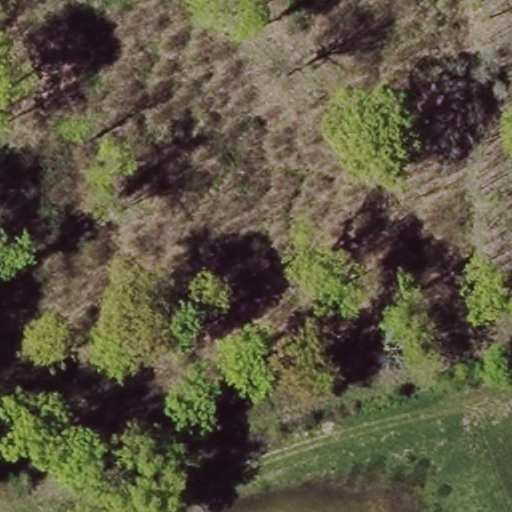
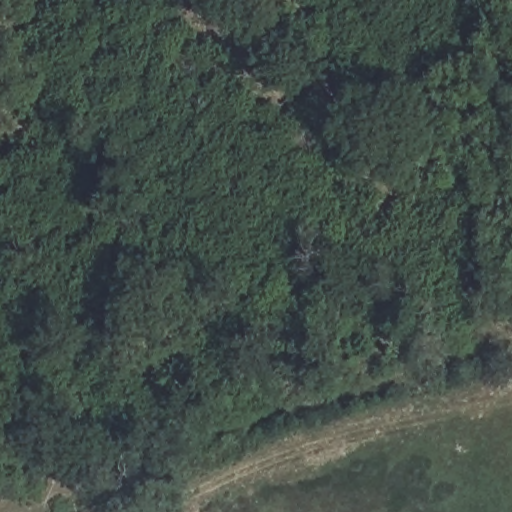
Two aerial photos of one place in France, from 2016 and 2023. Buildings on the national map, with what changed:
[]

